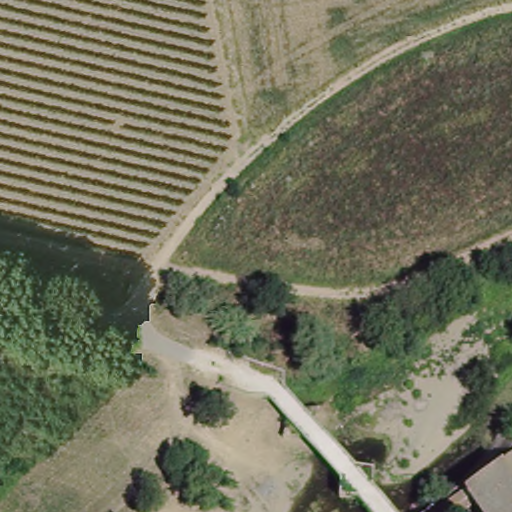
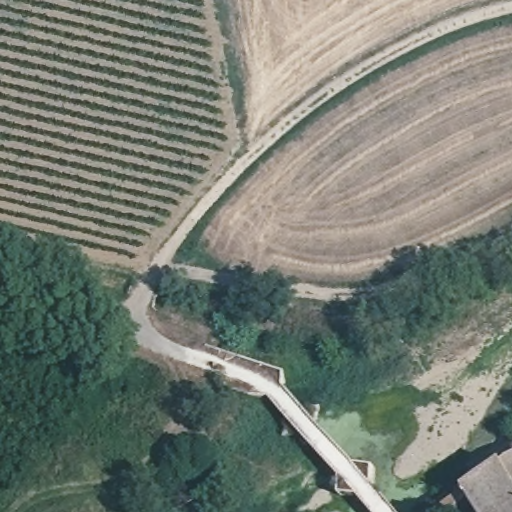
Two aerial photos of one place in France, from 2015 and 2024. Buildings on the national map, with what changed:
unchanged [(448,506),(509,464),(512,462),(512,512),(485,512),(481,505),(471,512),(437,512),(448,506)]

